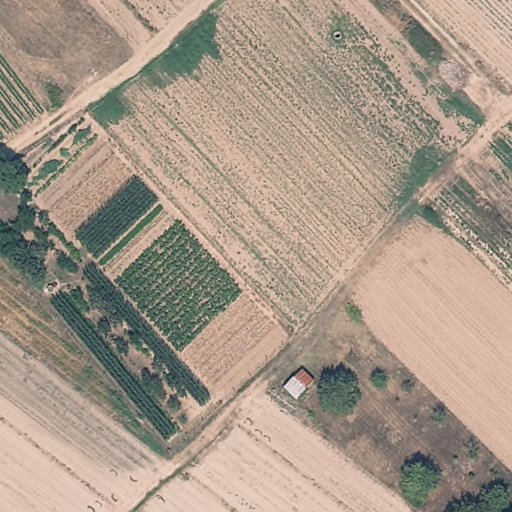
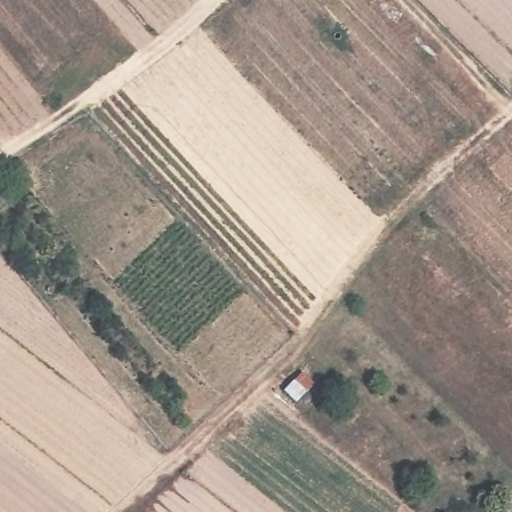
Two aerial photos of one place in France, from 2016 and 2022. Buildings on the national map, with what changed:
unchanged [(304,376),(317,389),(299,407),(285,394),(304,376)]

